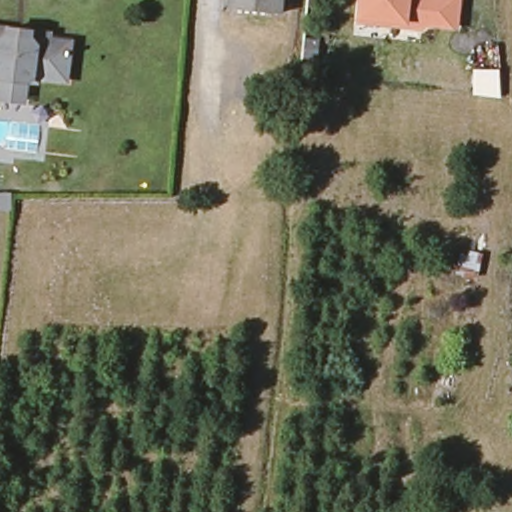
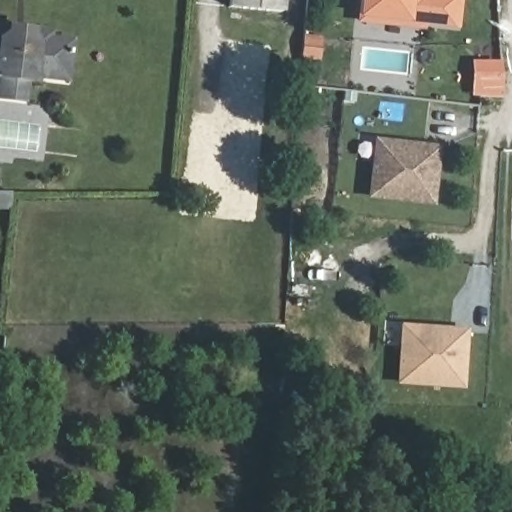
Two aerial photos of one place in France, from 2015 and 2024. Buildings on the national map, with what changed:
unchanged [(231,8),(232,0),(285,0),(284,12),(231,8)]
unchanged [(427,25),(425,30),(357,23),(359,17),(360,0),(461,0),(459,28),(427,25)]
unchanged [(64,80),(28,78),(25,102),(0,100),(0,28),(45,31),(51,41),(65,43),(64,80)]
new [(499,69),(500,96),(474,93),(472,71),(499,69)]
new [(434,206),(366,198),(373,137),(440,144),(434,206)]
new [(422,329),(429,330),(462,332),(458,387),(396,383),(400,328),(422,329)]

